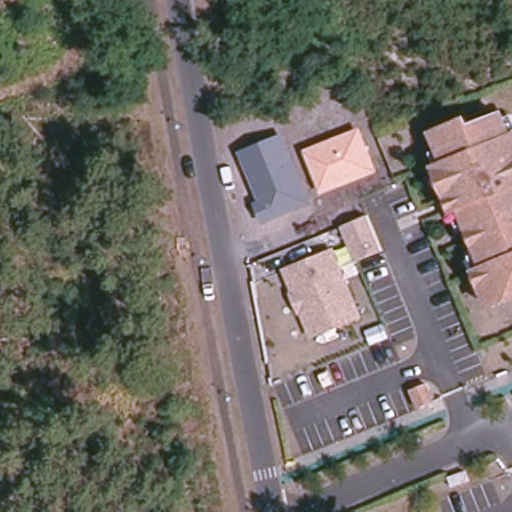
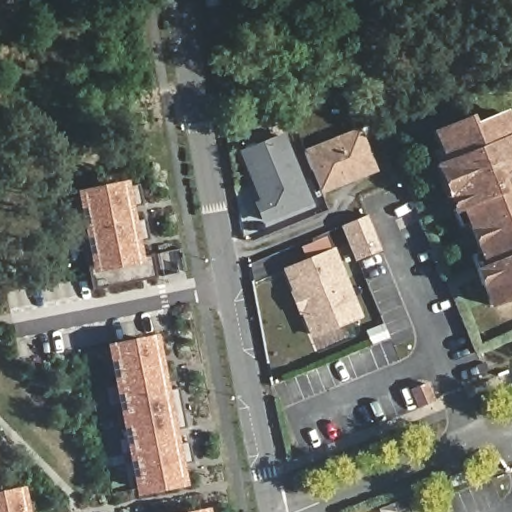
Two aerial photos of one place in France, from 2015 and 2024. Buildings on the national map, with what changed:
unchanged [(467,115),(470,123),(505,108),(512,131),(512,301),(488,310),(473,269),(481,266),(460,213),(453,216),(433,165),(441,162),(429,130),(467,115)]
unchanged [(323,193),(306,150),(362,128),(379,171),(323,193)]
unchanged [(313,204),(262,224),(253,201),(258,199),(239,151),(283,132),(313,204)]
new [(127,180),(128,185),(139,184),(142,203),(132,206),(135,220),(145,218),(149,239),(139,241),(142,256),(143,262),(91,271),(76,189),(127,180)]
unchanged [(367,216),(381,252),(353,264),(341,227),(367,216)]
unchanged [(362,319),(311,340),(282,270),(333,250),(362,319)]
new [(157,276),(95,289),(91,271),(143,262),(142,256),(152,255),(157,276)]
new [(168,389),(178,387),(186,426),(176,428),(178,443),(188,441),(192,461),(182,463),(186,486),(134,495),(105,344),(158,335),(168,389)]
unchanged [(429,383),(436,402),(418,409),(412,390),(429,383)]
new [(26,512),(0,512),(0,490),(22,486),(26,512)]
new [(185,512),(208,507),(208,512),(185,512)]

